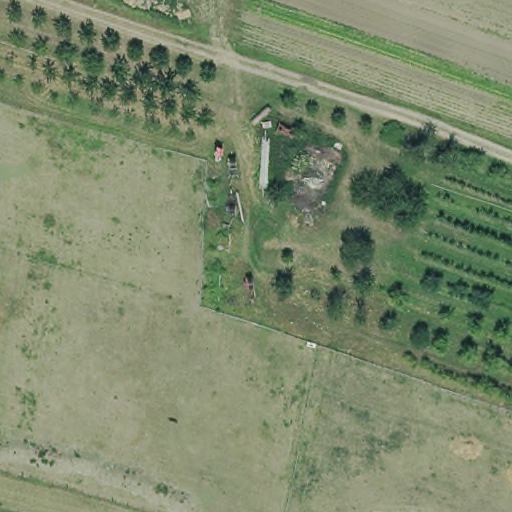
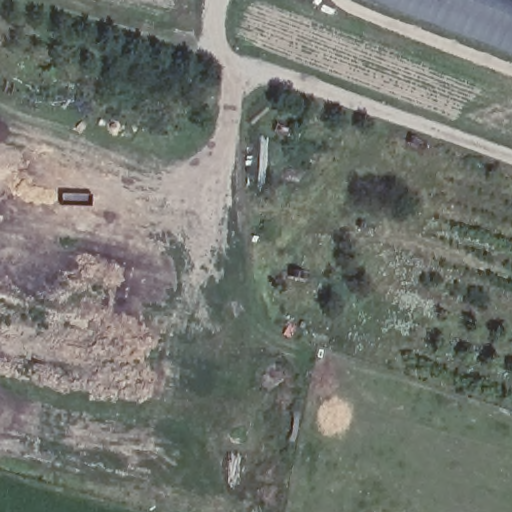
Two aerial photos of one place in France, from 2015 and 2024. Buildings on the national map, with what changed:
new [(365,0),(512,0),(512,57),(365,0)]

